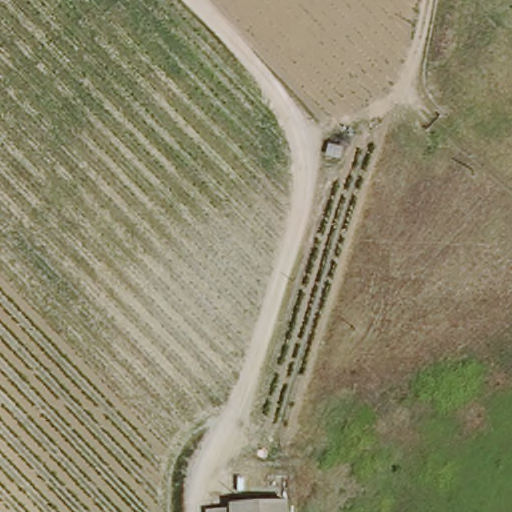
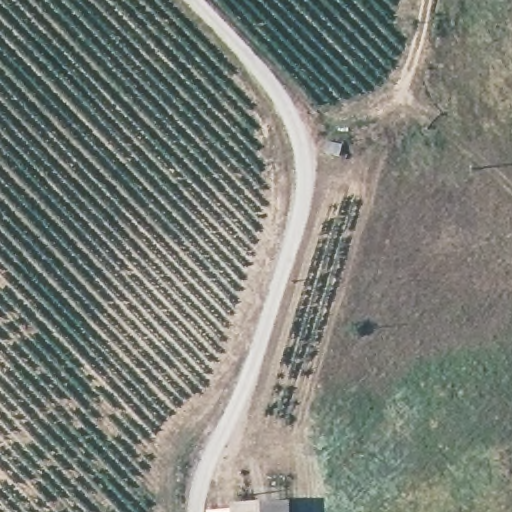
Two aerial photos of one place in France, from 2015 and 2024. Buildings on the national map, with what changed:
unchanged [(338,159),(323,152),(327,140),(342,146),(338,159)]
unchanged [(229,511),(286,510),(286,512),(229,512),(229,511)]

